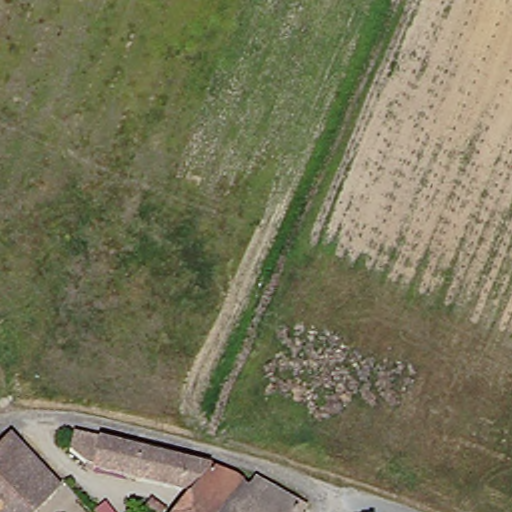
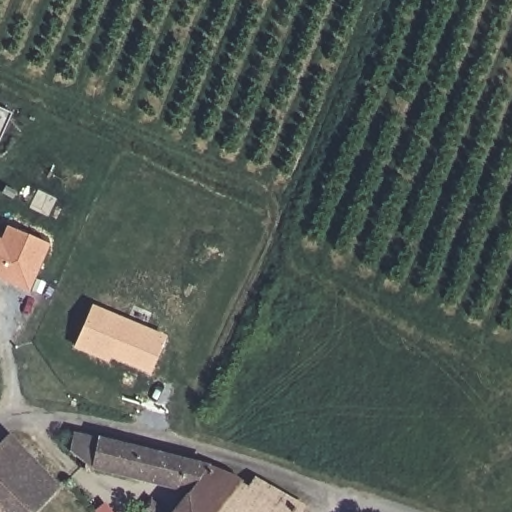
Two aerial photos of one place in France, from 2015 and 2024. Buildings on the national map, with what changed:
new [(13,111),(0,140),(0,106),(13,111)]
new [(2,242),(9,226),(26,235),(48,244),(29,290),(0,277),(0,241),(2,242)]
new [(136,365),(110,354),(108,360),(77,347),(92,307),(127,321),(134,305),(152,313),(146,329),(164,337),(154,362),(150,370),(136,365)]
unchanged [(80,426),(212,463),(186,496),(92,458),(70,443),(80,426)]
unchanged [(12,433),(66,477),(38,512),(0,512),(0,447),(12,433)]
unchanged [(212,463),(242,473),(213,512),(174,512),(186,496),(212,463)]
unchanged [(302,508),(298,512),(213,512),(242,473),(302,508)]

